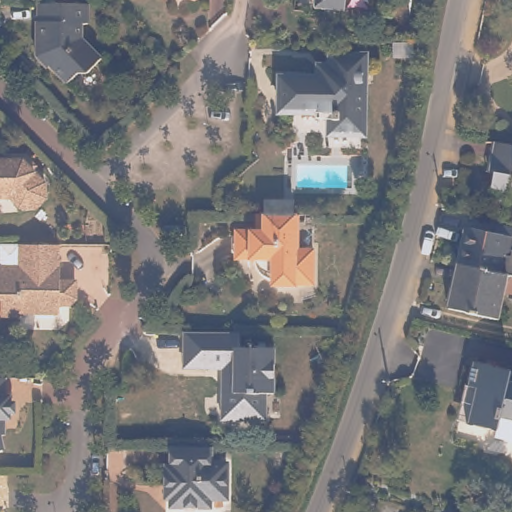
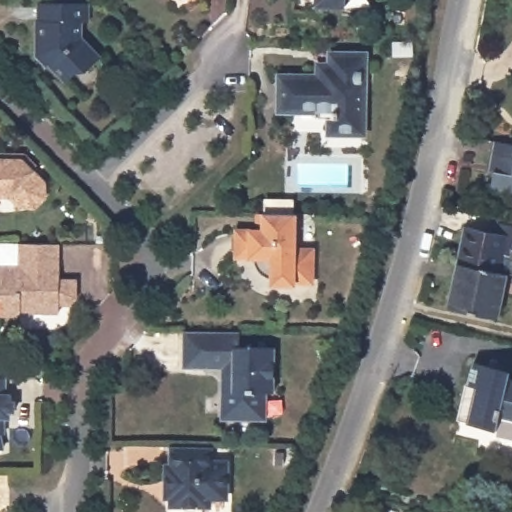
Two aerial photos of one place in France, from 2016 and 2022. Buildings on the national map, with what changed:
unchanged [(190,2),(182,1),(182,0),(195,0),(190,2)]
unchanged [(339,12),(311,8),(312,0),(340,0),(339,12)]
unchanged [(81,27),(76,27),(76,42),(96,62),(82,77),(71,77),(59,88),(41,72),(45,67),(38,60),(31,59),(31,25),(33,25),(33,6),(83,7),(81,27)]
unchanged [(281,92),(278,92),(275,90),(275,87),(275,83),(277,79),(278,79),(313,79),(314,77),(315,74),(316,71),(318,68),(324,68),(325,57),(362,57),(361,96),(358,95),(359,135),(328,136),(329,116),(317,116),(317,120),(312,120),(312,116),(294,115),(280,115),(281,92)]
unchanged [(508,197),(509,187),(491,184),(494,167),(488,166),(490,152),(493,135),(512,138),(512,197),(508,197)]
unchanged [(44,182),(19,206),(9,196),(6,198),(0,198),(0,159),(23,160),(44,182)]
unchanged [(310,250),(310,282),(292,282),(292,286),(270,286),(270,279),(262,276),(255,272),(253,265),(252,260),(234,258),(234,232),(254,232),(255,232),(255,214),(263,214),(290,215),(296,215),(296,233),(295,250),(310,250)]
unchanged [(512,247),(512,248),(512,275),(507,273),(458,263),(465,227),(512,237),(512,245),(512,247)]
unchanged [(55,279),(70,279),(70,298),(62,303),(55,303),(54,312),(16,312),(16,315),(0,314),(0,265),(17,265),(16,243),(53,244),(52,267),(56,267),(55,279)]
unchanged [(499,316),(449,306),(458,263),(507,273),(499,316)]
unchanged [(217,366),(184,365),(179,365),(179,347),(179,331),(236,332),(235,346),(268,347),(269,392),(261,392),(259,418),(217,418),(217,388),(217,375),(217,366)]
unchanged [(511,367),(510,373),(512,374),(512,436),(494,433),(496,427),(467,420),(477,382),(470,378),(475,357),(511,367)]
unchanged [(4,396),(9,396),(9,417),(4,417),(4,434),(0,436),(0,378),(4,378),(4,396)]
unchanged [(3,450),(0,450),(0,437),(1,437),(3,450)]
unchanged [(288,449),(289,459),(274,459),(275,450),(288,449)]
unchanged [(208,450),(208,467),(224,467),(224,502),(207,502),(208,509),(171,510),(170,486),(164,485),(165,470),(170,470),(170,450),(208,450)]

